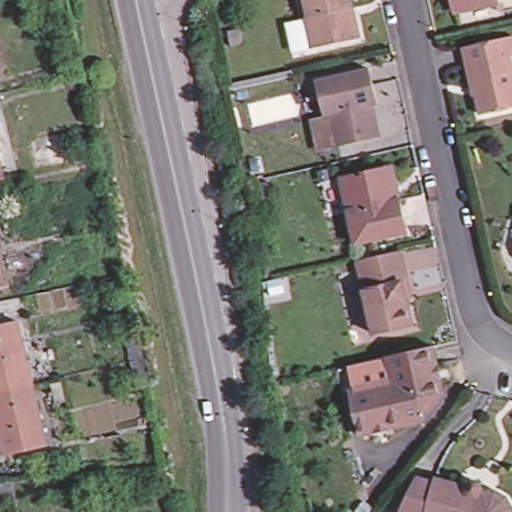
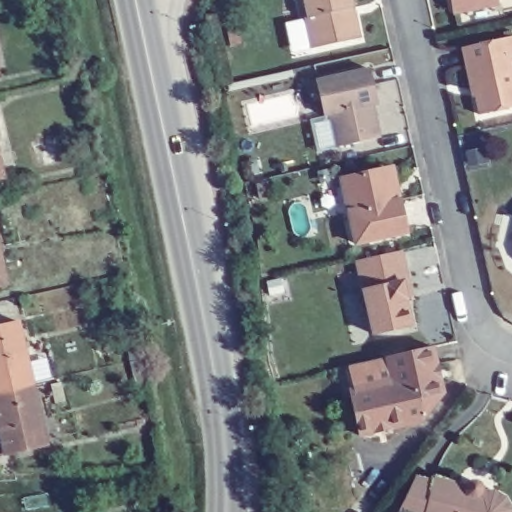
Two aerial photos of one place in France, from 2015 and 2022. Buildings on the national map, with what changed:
unchanged [(303,5),(302,4),(304,3),(304,0),(350,0),(351,1),(343,3),(344,11),(353,15),(357,35),(311,44),(289,48),(281,9),(303,5)]
unchanged [(493,9),(450,16),(447,0),(504,0),(492,3),(493,9)]
unchanged [(472,110),(463,59),(458,60),(454,41),(499,31),(507,30),(511,49),(503,51),(512,92),(512,102),(472,110)]
unchanged [(316,119),(323,118),(314,82),(366,70),(374,105),(365,107),(367,115),(372,115),(378,138),(338,146),(323,149),(316,119)]
unchanged [(0,141),(0,133),(1,140),(0,141)]
unchanged [(383,164),(389,196),(398,194),(405,224),(353,235),(341,173),(383,164)]
unchanged [(402,259),(409,289),(403,291),(411,334),(374,342),(359,269),(402,259)]
unchanged [(0,323),(16,319),(31,382),(0,388),(0,323)]
unchanged [(447,399),(426,425),(363,438),(353,397),(388,389),(383,364),(435,352),(447,399)]
unchanged [(0,427),(0,388),(31,382),(45,443),(5,451),(3,440),(0,441),(0,429),(0,427)]
unchanged [(474,486),(474,483),(476,482),(477,481),(478,480),(479,479),(481,479),(483,479),(486,481),(487,482),(488,484),(489,485),(489,487),(489,490),(501,490),(512,497),(512,512),(434,512),(441,482),(442,478),(474,486)]
unchanged [(434,512),(409,512),(424,479),(441,482),(434,512)]

